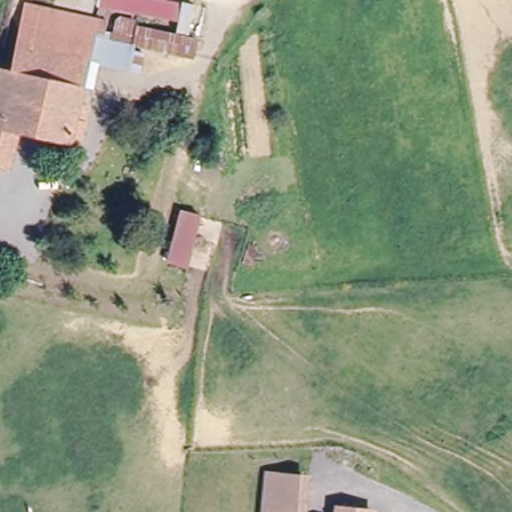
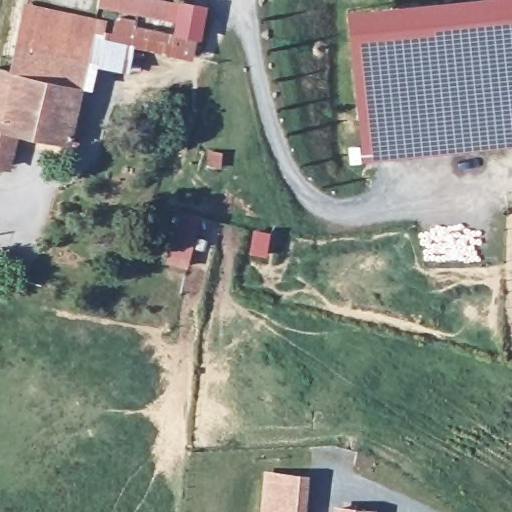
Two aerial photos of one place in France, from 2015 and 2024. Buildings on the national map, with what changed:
unchanged [(177,21),(95,6),(96,0),(169,0),(192,4),(187,34),(176,31),(177,21)]
new [(347,11),(447,0),(512,0),(512,146),(364,161),(347,11)]
unchanged [(9,76),(24,9),(99,25),(86,80),(85,86),(78,85),(65,140),(13,129),(3,166),(0,165),(0,74),(9,76)]
unchanged [(86,80),(99,25),(112,30),(116,14),(136,19),(135,24),(176,31),(187,34),(198,35),(194,58),(134,46),(133,50),(144,53),(141,74),(98,64),(94,86),(85,86),(86,80)]
unchanged [(202,213),(189,268),(166,262),(180,206),(202,213)]
unchanged [(298,506),(273,503),(267,502),(270,472),(308,476),(303,512),(297,512),(298,506)]
unchanged [(267,502),(273,503),(298,506),(297,512),(266,512),(267,502)]
unchanged [(337,506),(367,509),(374,511),(373,512),(336,512),(337,506)]

